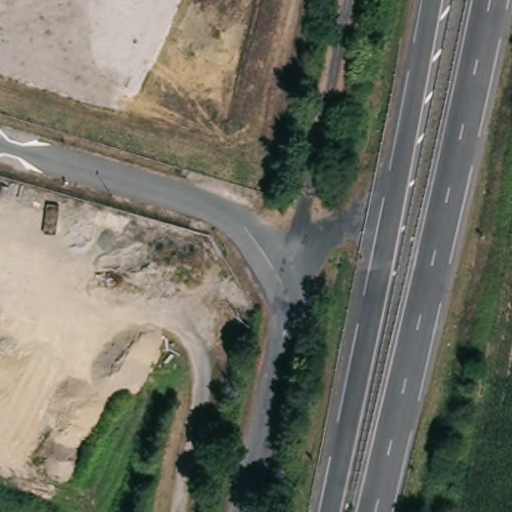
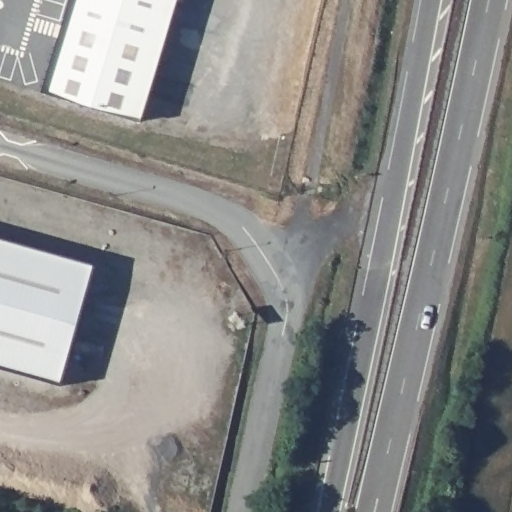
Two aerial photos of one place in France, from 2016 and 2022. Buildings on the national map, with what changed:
new [(72,0),(177,0),(141,121),(45,92),(72,0)]
new [(62,385),(0,368),(0,239),(96,265),(62,385)]

